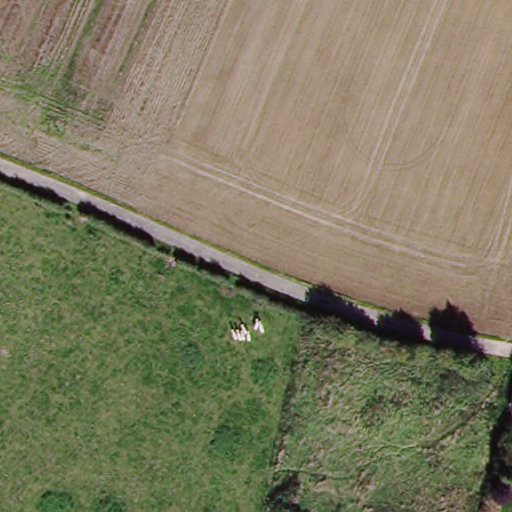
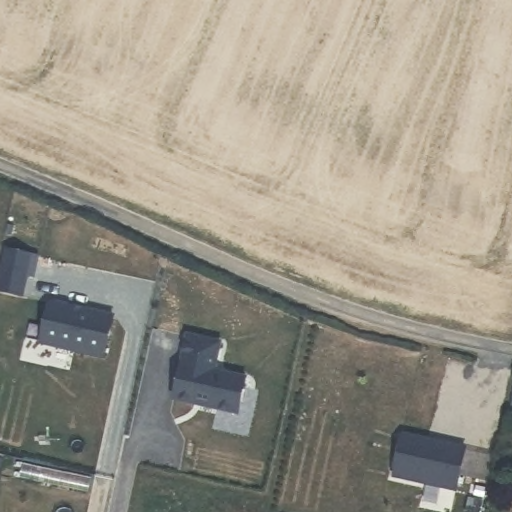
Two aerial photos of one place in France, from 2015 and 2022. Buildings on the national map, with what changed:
new [(50,310),(56,306),(74,310),(73,313),(83,315),(83,312),(115,319),(106,361),(42,347),(50,310)]
new [(190,339),(222,347),(216,375),(248,382),(240,417),(209,411),(206,406),(197,404),(197,408),(175,403),(190,339)]
new [(404,443),(466,457),(458,494),(396,481),(404,443)]

